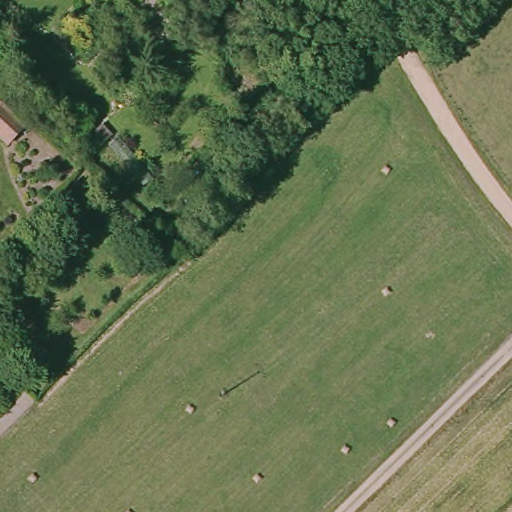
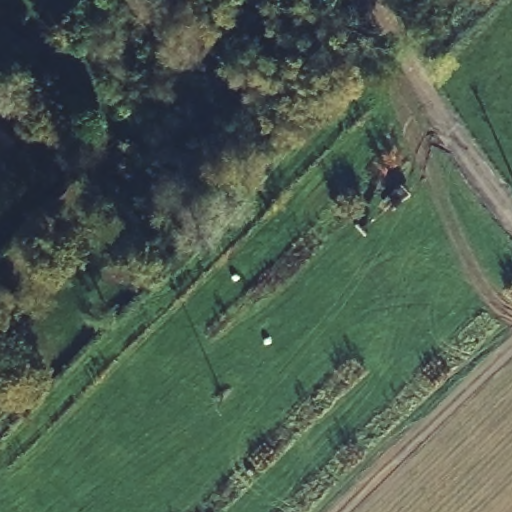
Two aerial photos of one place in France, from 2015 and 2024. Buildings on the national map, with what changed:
unchanged [(18,130),(2,146),(0,144),(0,112),(18,130)]

